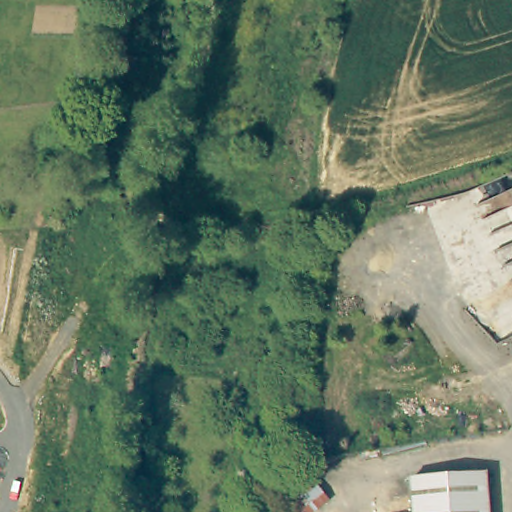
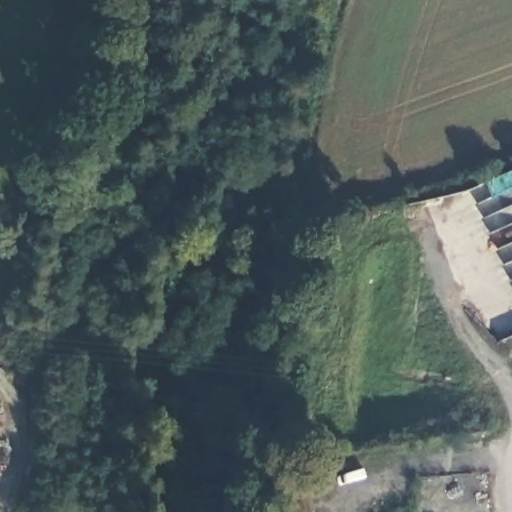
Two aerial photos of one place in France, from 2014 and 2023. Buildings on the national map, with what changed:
demolished [(412,473),(488,467),(492,512),(416,512),(414,493),(412,473)]

